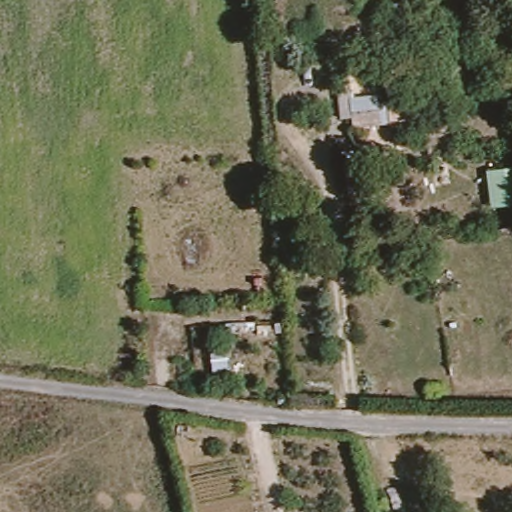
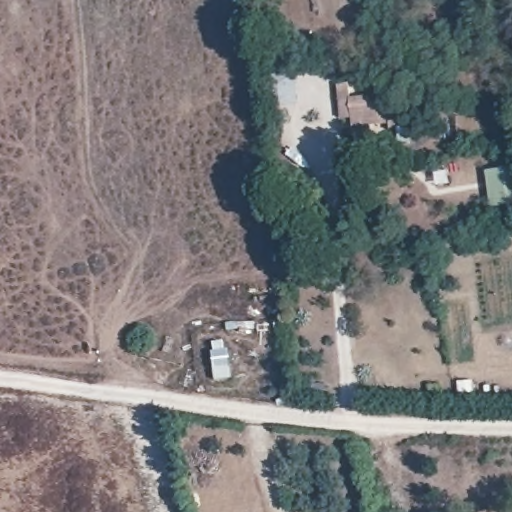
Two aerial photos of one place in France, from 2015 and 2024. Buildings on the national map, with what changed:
unchanged [(380,100),(384,123),(356,123),(350,101),(380,100)]
unchanged [(231,352),(231,379),(211,378),(205,350),(231,352)]

